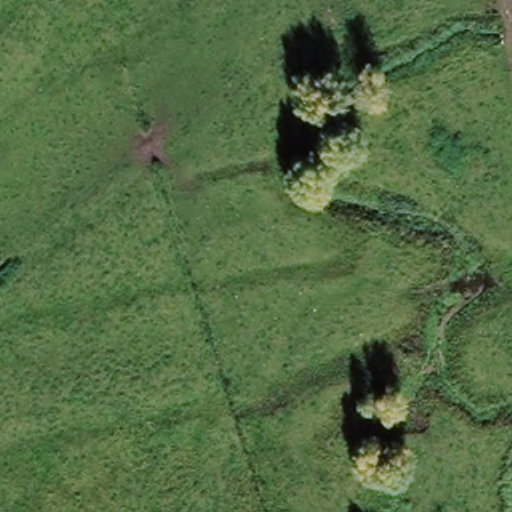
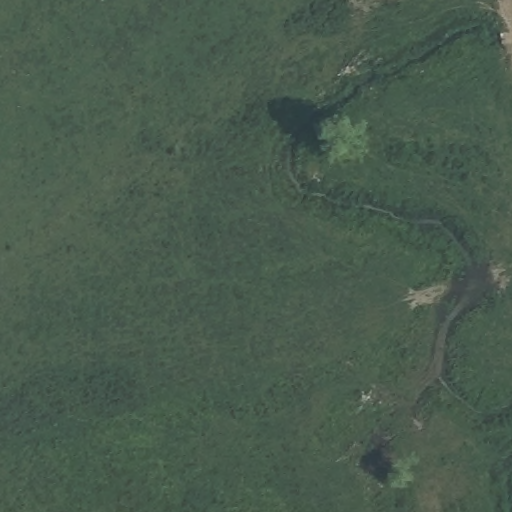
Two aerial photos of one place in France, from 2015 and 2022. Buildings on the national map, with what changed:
[]

